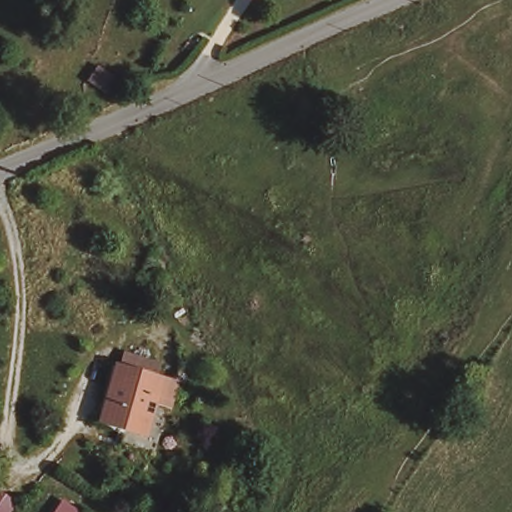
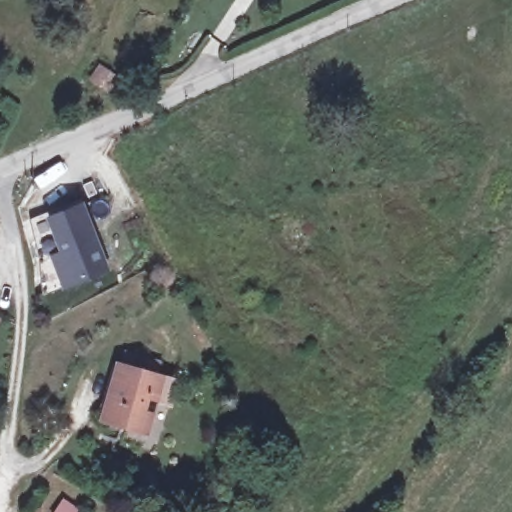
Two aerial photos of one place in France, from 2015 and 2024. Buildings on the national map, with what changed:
new [(58,251),(43,217),(82,202),(110,271),(61,290),(47,255),(58,251)]
unchanged [(105,420),(121,366),(159,376),(145,430),(105,420)]
demolished [(18,510),(17,512),(0,512),(0,499),(18,510)]

